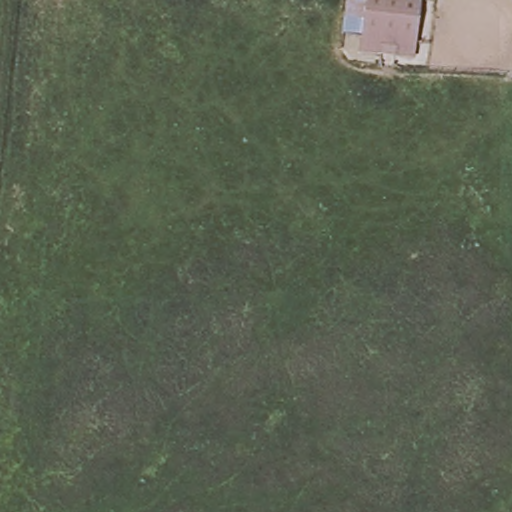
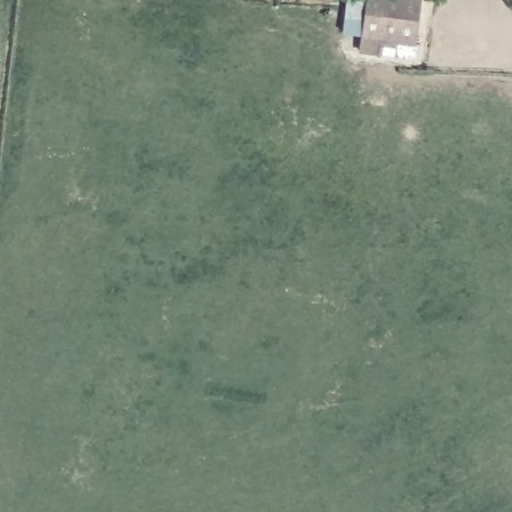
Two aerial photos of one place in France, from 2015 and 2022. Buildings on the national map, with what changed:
unchanged [(412,58),(362,53),(367,0),(418,0),(412,58)]

